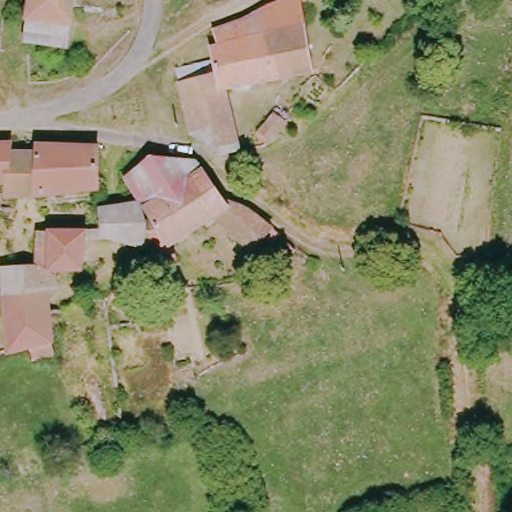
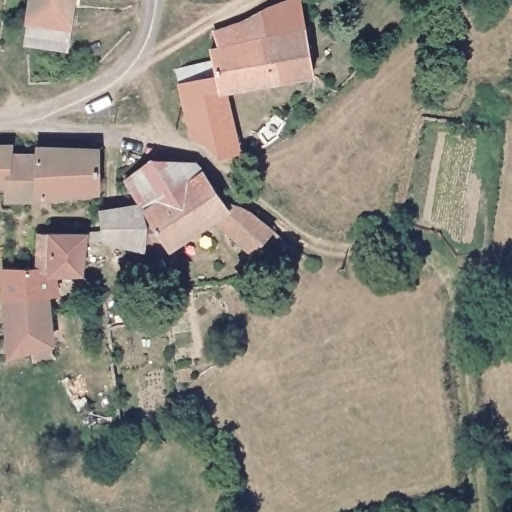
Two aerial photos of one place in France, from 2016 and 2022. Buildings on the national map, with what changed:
unchanged [(22,19),(25,0),(68,0),(65,24),(22,19)]
unchanged [(292,1),(306,76),(216,97),(178,106),(173,90),(210,78),(207,66),(205,55),(214,54),(211,36),(235,30),(262,11),(271,9),(292,1)]
unchanged [(61,48),(18,41),(22,19),(65,24),(61,48)]
unchanged [(200,142),(190,141),(178,106),(216,97),(231,161),(215,165),(200,142)]
unchanged [(283,125),(280,134),(259,150),(247,155),(242,143),(253,140),(276,119),(283,125)]
unchanged [(3,139),(3,147),(2,175),(0,175),(0,138),(3,139)]
unchanged [(90,184),(1,187),(2,175),(3,147),(28,148),(30,141),(93,140),(90,184)]
unchanged [(288,253),(275,267),(255,249),(243,253),(203,219),(164,248),(167,268),(152,271),(148,257),(147,249),(156,241),(147,223),(124,179),(139,160),(180,168),(197,174),(219,210),(243,215),(288,253)]
unchanged [(138,256),(131,248),(128,247),(105,245),(96,235),(96,210),(130,208),(130,226),(147,223),(156,241),(147,249),(148,257),(138,256)]
unchanged [(32,362),(30,350),(6,352),(1,270),(31,268),(40,239),(85,232),(81,275),(50,277),(52,292),(41,299),(50,360),(32,362)]

